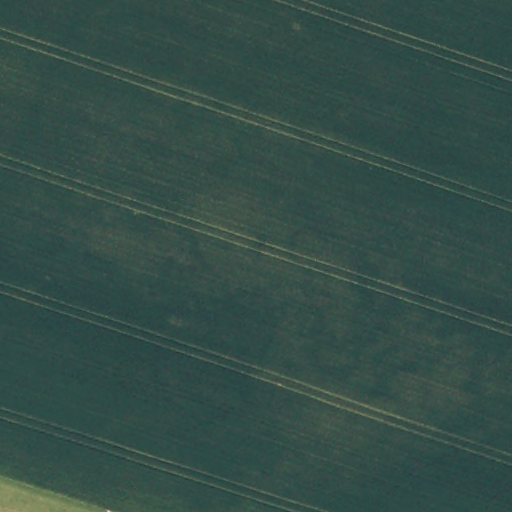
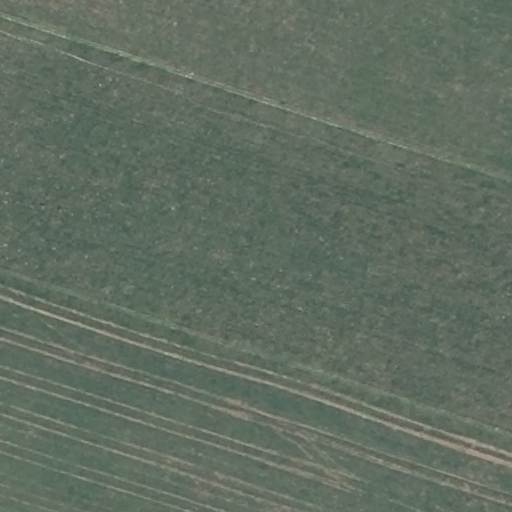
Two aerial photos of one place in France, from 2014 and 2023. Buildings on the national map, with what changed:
[]

